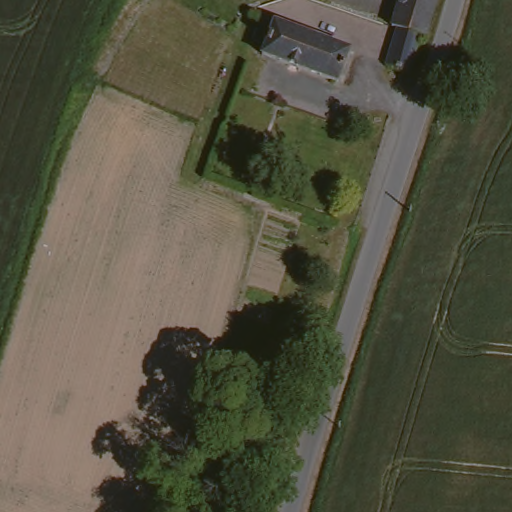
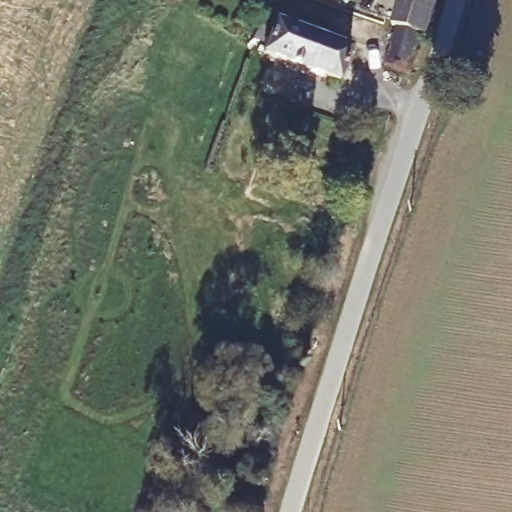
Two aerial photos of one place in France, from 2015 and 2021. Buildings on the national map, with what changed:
unchanged [(418,39),(395,31),(391,30),(398,0),(433,0),(423,41),(418,39)]
unchanged [(266,47),(254,42),(264,20),(275,26),(309,42),(297,74),(292,71),(262,57),(266,47)]
unchanged [(416,47),(405,85),(384,78),(395,31),(418,39),(416,47)]
unchanged [(348,59),(336,91),(297,74),(309,42),(348,59)]

